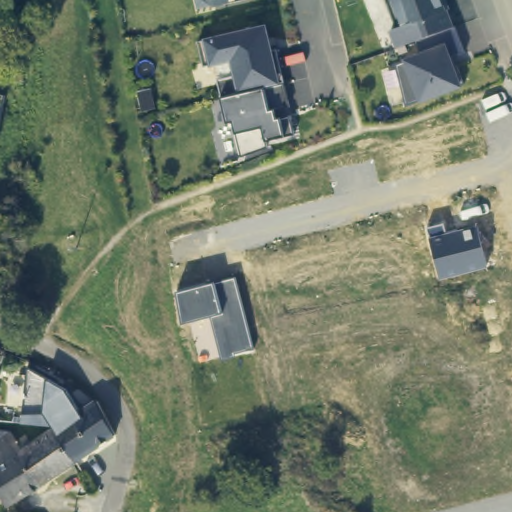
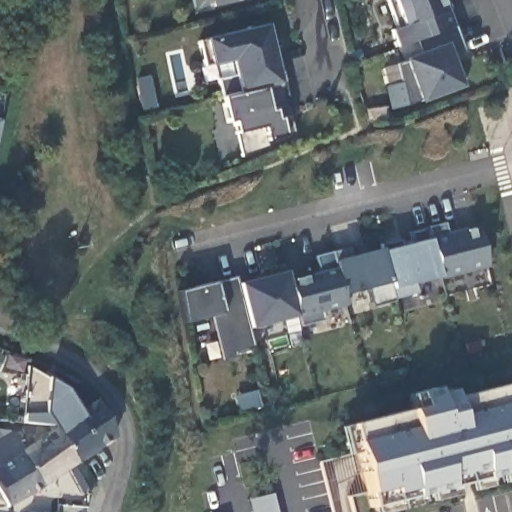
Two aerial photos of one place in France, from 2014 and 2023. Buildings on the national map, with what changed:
unchanged [(215,0),(256,0),(217,9),(215,0)]
unchanged [(415,44),(408,46),(397,51),(390,34),(396,31),(384,0),(445,0),(449,12),(447,13),(454,29),(415,44)]
unchanged [(287,84),(238,96),(234,97),(230,98),(223,99),(219,83),(237,78),(233,63),(205,70),(199,44),(268,28),(273,53),(278,51),(287,84)]
unchanged [(457,28),(467,55),(451,61),(453,69),(458,68),(465,86),(407,109),(394,68),(420,58),(415,44),(454,29),(457,28)]
unchanged [(292,109),(277,113),(279,121),(292,118),(297,137),(269,144),(270,149),(243,159),(234,124),(229,126),(224,106),(236,104),(234,97),(238,96),(287,84),(292,109)]
unchanged [(427,230),(444,225),(448,238),(476,232),(486,269),(439,281),(427,230)]
new [(285,271),(288,280),(303,277),(318,272),(314,257),(333,253),(351,249),(354,254),(381,249),(382,251),(411,244),(408,234),(427,230),(429,239),(438,278),(414,284),(417,294),(375,305),(371,289),(344,295),(347,305),(320,311),(323,322),(299,328),(295,318),(248,329),(238,284),(285,271)]
unchanged [(207,318),(179,324),(173,294),(212,284),(236,279),(253,351),(221,359),(207,318)]
unchanged [(28,370),(61,386),(67,396),(54,404),(39,413),(46,424),(21,423),(28,370)]
new [(418,411),(414,396),(432,391),(433,397),(448,393),(449,402),(507,388),(512,409),(512,475),(369,512),(348,429),(418,411)]
unchanged [(70,465),(50,431),(48,427),(39,413),(54,404),(67,396),(76,412),(94,402),(113,434),(111,435),(70,465)]
unchanged [(0,415),(5,424),(9,430),(20,449),(50,431),(70,465),(6,505),(0,496),(0,415)]
new [(273,494),(278,512),(250,512),(248,501),(273,494)]

